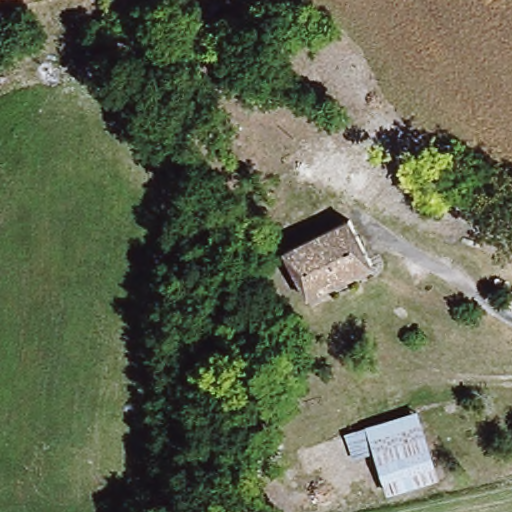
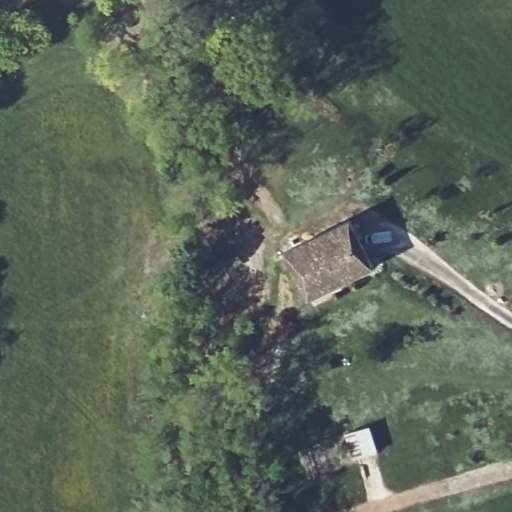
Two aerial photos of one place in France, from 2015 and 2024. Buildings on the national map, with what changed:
unchanged [(294,244),(352,218),(372,262),(313,288),(294,244)]
unchanged [(512,284),(512,311),(500,307),(502,284),(512,284)]
demolished [(441,475),(390,493),(383,463),(369,468),(365,453),(351,457),(345,429),(417,406),(441,475)]

